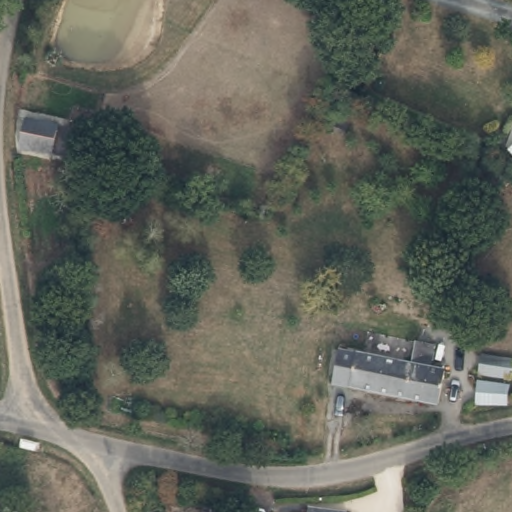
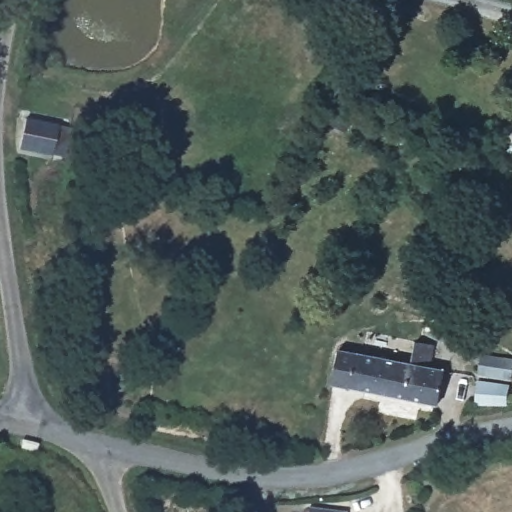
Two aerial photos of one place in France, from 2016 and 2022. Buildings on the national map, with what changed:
unchanged [(16,144),(25,117),(51,124),(48,150),(16,144)]
unchanged [(512,346),(511,353),(509,363),(481,358),(484,345),(485,340),(512,346)]
unchanged [(328,386),(334,353),(351,356),(413,367),(416,346),(433,348),(430,369),(434,370),(445,373),(443,382),(438,405),(346,389),(328,386)]
unchanged [(475,388),(479,366),(508,372),(505,390),(490,390),(475,388)]
unchanged [(348,510),(348,512),(312,512),(314,504),(348,510)]

